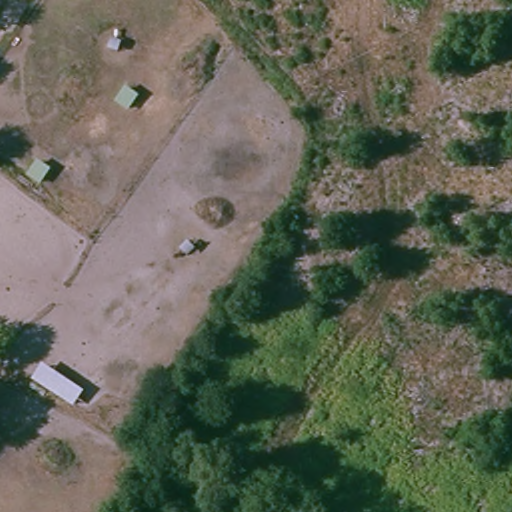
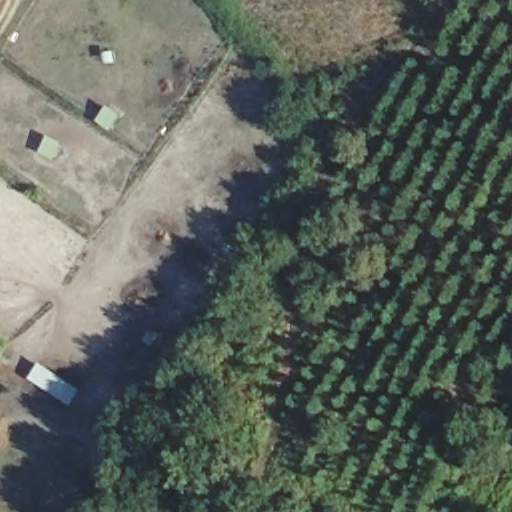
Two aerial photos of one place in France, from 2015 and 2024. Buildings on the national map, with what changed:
[]

